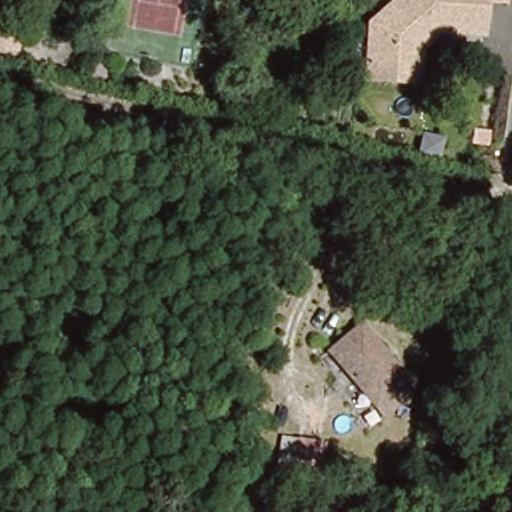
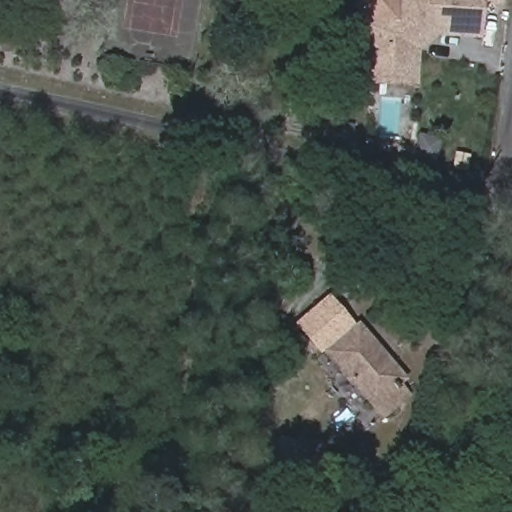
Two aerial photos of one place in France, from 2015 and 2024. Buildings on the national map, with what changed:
unchanged [(358,84),(362,24),(389,0),(483,0),(480,37),(438,36),(420,51),(417,86),(358,84)]
new [(320,350),(322,352),(320,353),(294,323),(330,292),(353,323),(320,350)]
unchanged [(358,320),(416,392),(379,421),(320,350),(358,320)]
unchanged [(324,442),(318,481),(274,476),(280,437),(324,442)]

